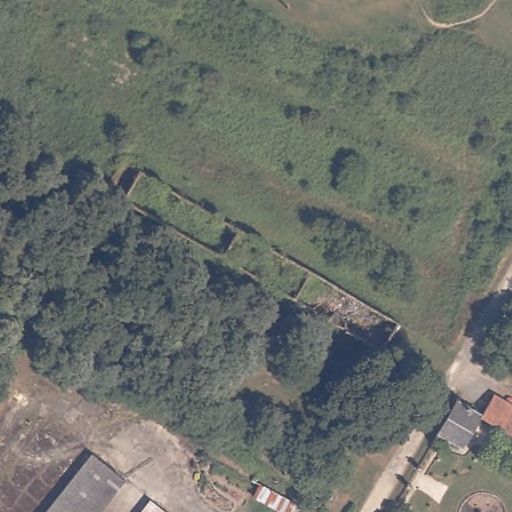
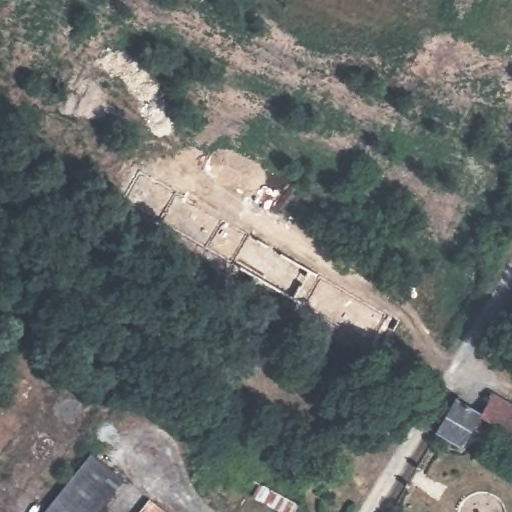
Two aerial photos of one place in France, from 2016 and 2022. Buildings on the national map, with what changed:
unchanged [(119,194),(137,163),(156,175),(411,325),(394,356),(137,205),(119,194)]
unchanged [(512,434),(481,416),(496,392),(512,401),(512,434)]
unchanged [(438,433),(457,401),(481,416),(464,447),(438,433)]
unchanged [(93,452),(125,478),(98,512),(46,512),(93,452)]
unchanged [(253,497),(260,483),(298,503),(294,512),(282,512),(253,497)]
unchanged [(151,499),(168,512),(141,512),(151,499)]

